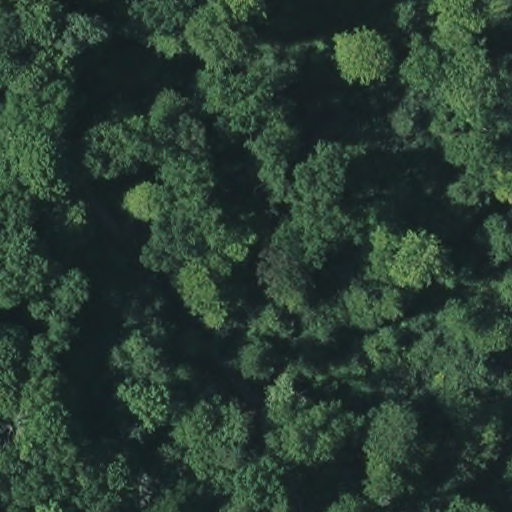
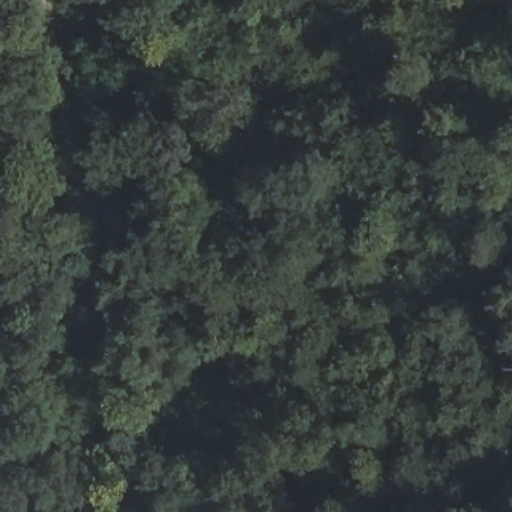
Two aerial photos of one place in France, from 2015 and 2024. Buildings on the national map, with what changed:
unchanged [(189,512),(184,488),(212,480),(220,504),(189,512)]

